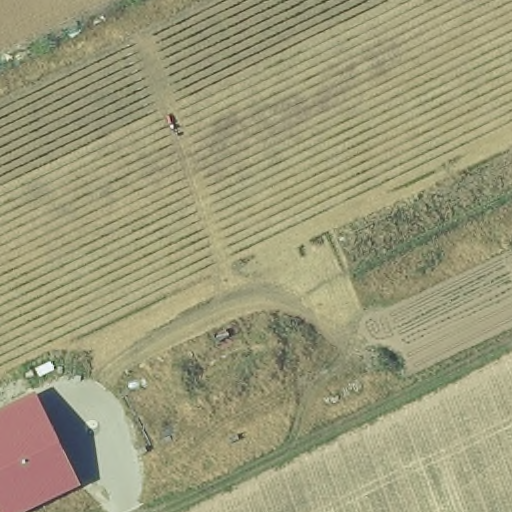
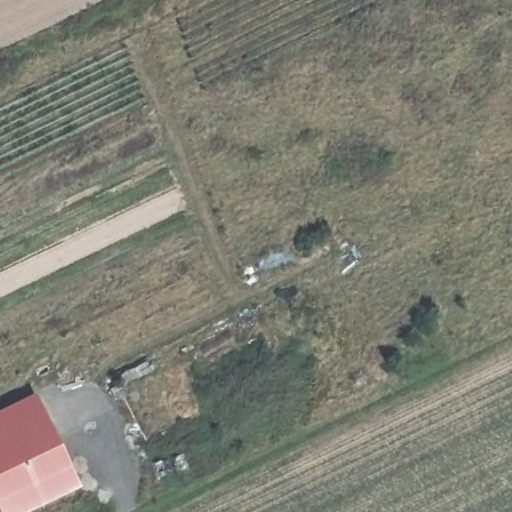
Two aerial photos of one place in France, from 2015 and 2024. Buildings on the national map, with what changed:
unchanged [(82,488),(30,512),(0,512),(0,412),(37,394),(82,488)]

